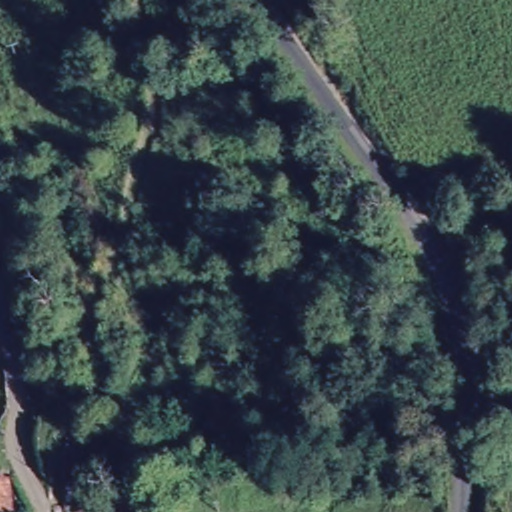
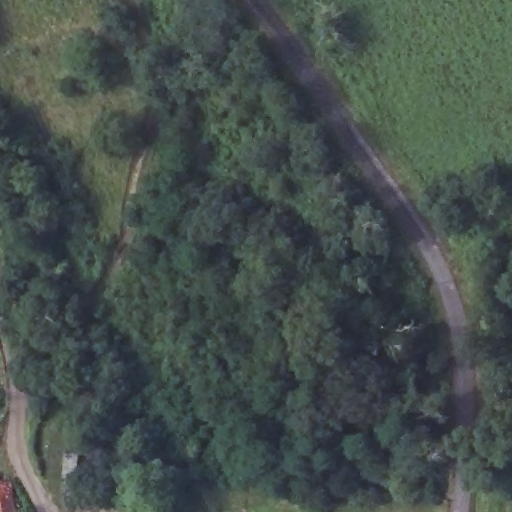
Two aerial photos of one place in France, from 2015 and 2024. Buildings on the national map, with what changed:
unchanged [(0,512),(0,483),(2,483),(6,512),(0,512)]

